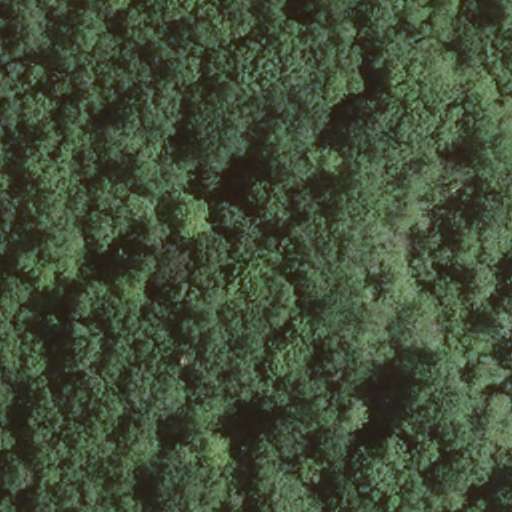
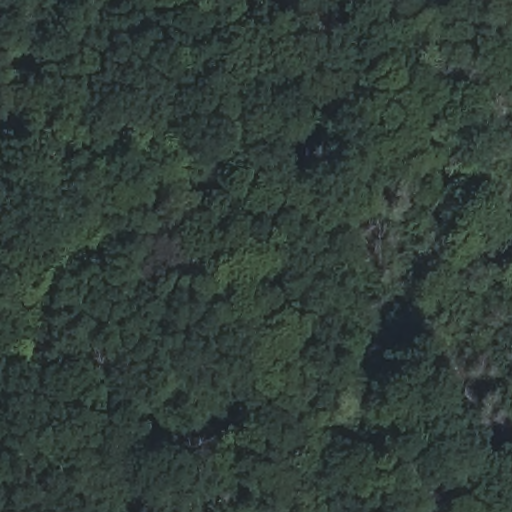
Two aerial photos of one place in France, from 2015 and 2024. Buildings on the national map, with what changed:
[]

